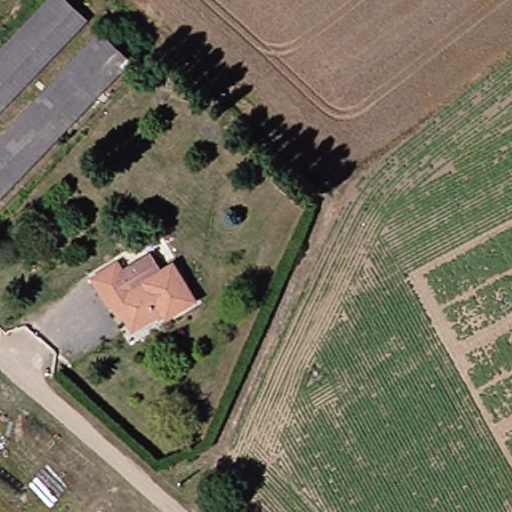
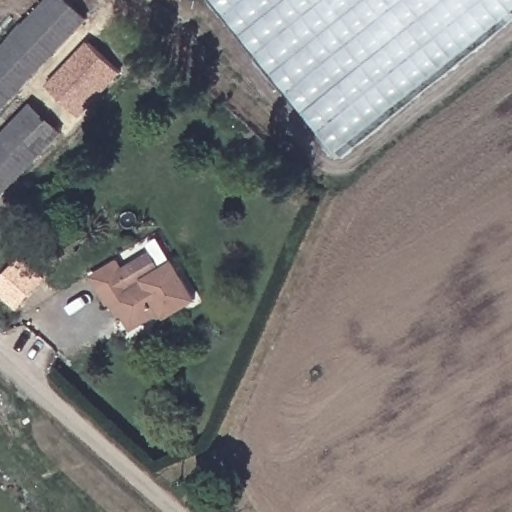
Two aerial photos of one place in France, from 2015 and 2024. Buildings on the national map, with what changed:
unchanged [(0,54),(49,0),(78,0),(93,13),(0,118),(0,54)]
new [(337,153),(214,0),(512,0),(512,14),(337,153)]
unchanged [(0,210),(0,151),(108,30),(135,52),(0,210)]
unchanged [(111,307),(94,280),(114,267),(121,277),(149,260),(159,277),(172,269),(194,305),(169,321),(165,315),(135,333),(116,303),(111,307)]

